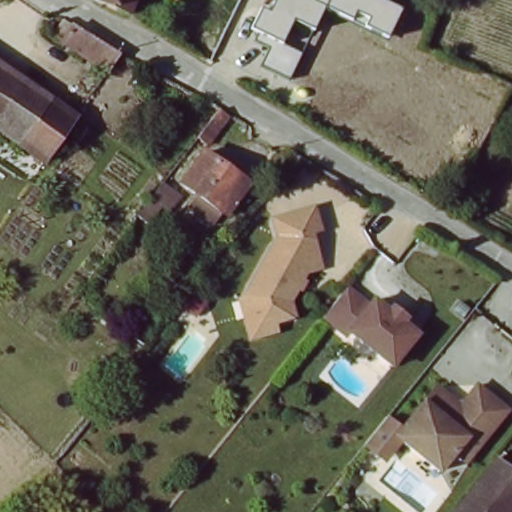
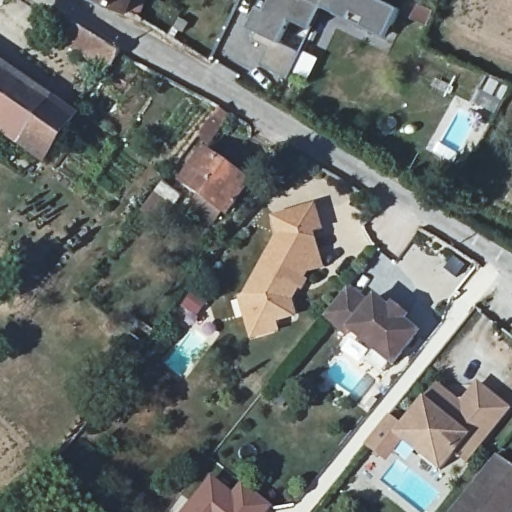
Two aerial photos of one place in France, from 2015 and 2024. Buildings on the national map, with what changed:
unchanged [(140,0),(133,18),(100,1),(101,0),(140,0)]
unchanged [(324,7),(313,30),(293,20),(281,44),(301,54),(289,80),(261,66),(271,47),(255,40),(258,32),(251,29),(260,9),(269,13),(275,0),(381,0),(400,9),(387,39),(324,7)]
unchanged [(115,54),(103,71),(55,40),(66,23),(115,54)]
unchanged [(38,160),(0,134),(0,62),(71,111),(38,160)]
unchanged [(207,156),(195,147),(221,114),(235,121),(207,156)]
unchanged [(246,195),(221,224),(181,190),(203,161),(246,195)]
unchanged [(255,333),(244,295),(253,292),(258,283),(255,281),(276,244),(280,245),(285,237),(279,216),(319,206),(325,227),(315,230),(325,265),(310,269),(293,298),(296,313),(276,318),(279,327),(255,333)]
unchanged [(371,302),(376,297),(392,309),(395,305),(409,315),(405,320),(420,332),(395,362),(352,328),(349,332),(326,313),(350,285),(371,302)]
unchanged [(405,427),(439,385),(463,405),(480,383),(511,408),(468,461),(457,451),(442,470),(400,435),(384,455),(367,442),(389,415),(405,427)]
unchanged [(505,452),(512,459),(512,512),(456,512),(505,452)]
new [(231,491),(240,480),(271,506),(266,512),(181,512),(209,475),(231,491)]

